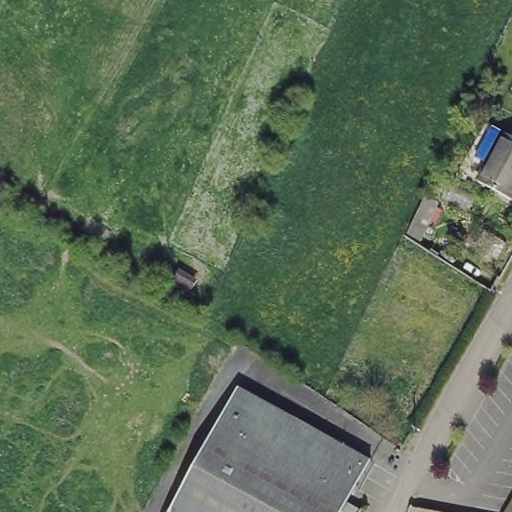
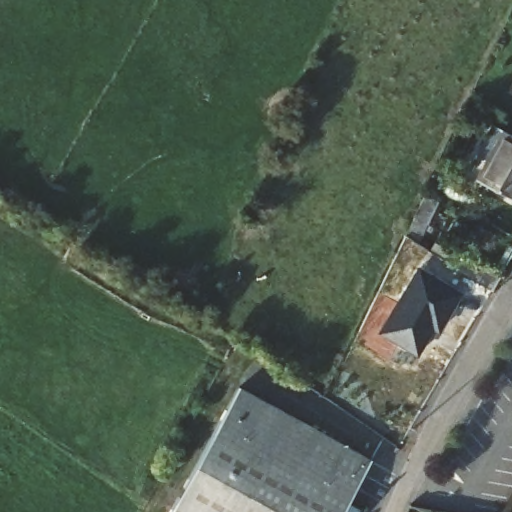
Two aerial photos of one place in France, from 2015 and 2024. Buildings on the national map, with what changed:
unchanged [(487,162),(475,155),(492,123),(512,135),(512,197),(479,179),(487,162)]
unchanged [(427,188),(434,173),(447,181),(434,207),(416,242),(404,235),(421,200),(427,188)]
new [(418,358),(377,333),(418,266),(463,293),(439,333),(434,330),(418,358)]
unchanged [(167,512),(236,385),(365,455),(344,495),(356,502),(351,512),(167,512)]

